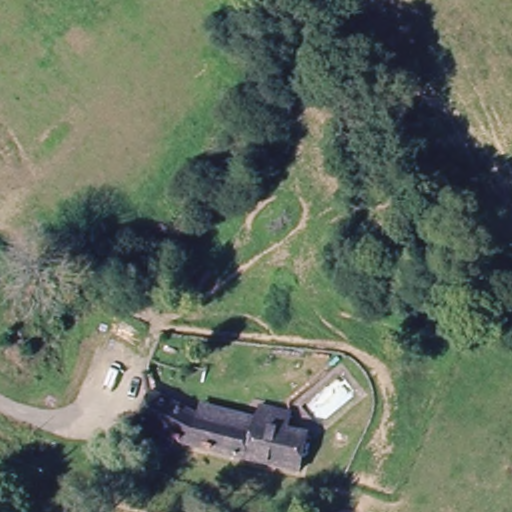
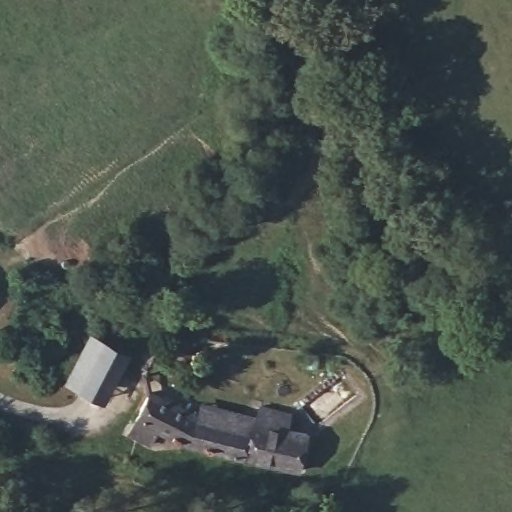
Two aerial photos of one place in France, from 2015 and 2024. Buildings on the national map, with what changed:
new [(88,337),(124,355),(102,400),(66,382),(88,337)]
unchanged [(167,440),(150,432),(142,447),(123,438),(144,394),(192,417),(248,432),(253,410),(284,416),(280,433),(304,438),(294,475),(167,440)]

